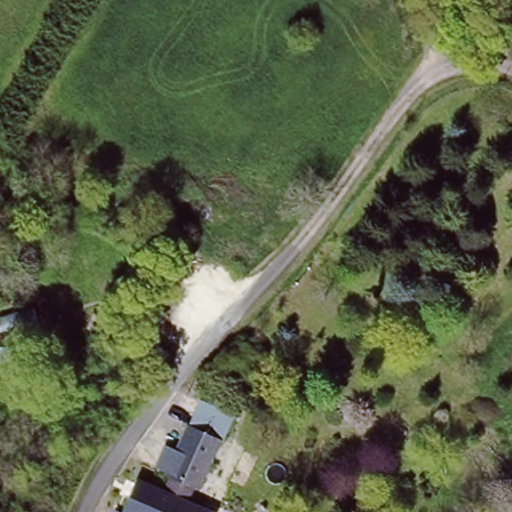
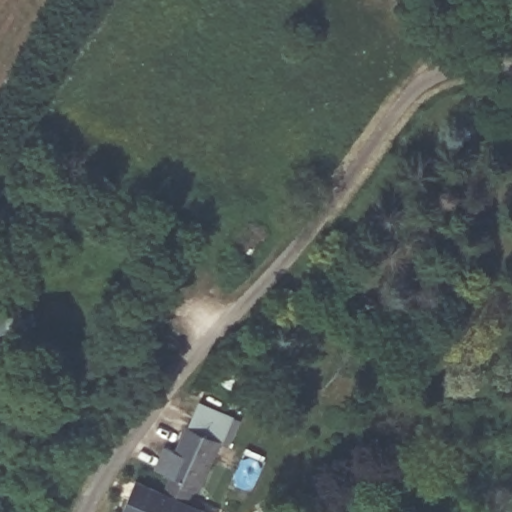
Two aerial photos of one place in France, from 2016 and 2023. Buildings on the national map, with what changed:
unchanged [(163,493),(170,477),(166,475),(168,473),(189,430),(217,444),(196,490),(191,487),(184,502),(205,512),(121,512),(135,480),(163,493)]

